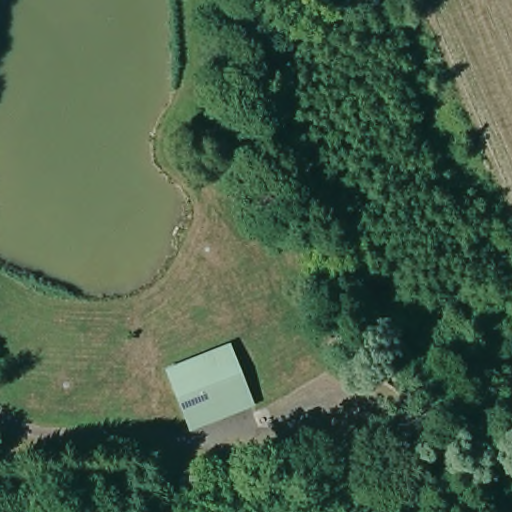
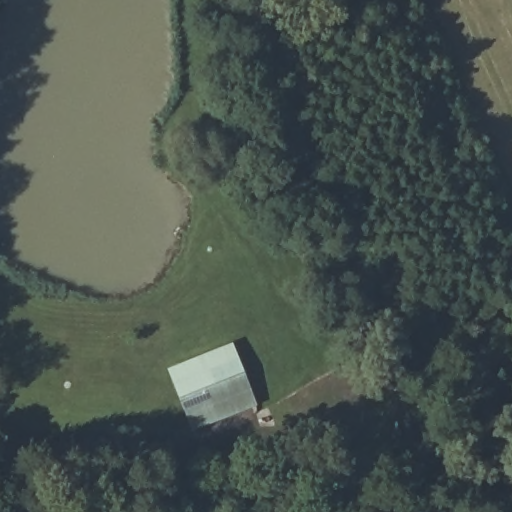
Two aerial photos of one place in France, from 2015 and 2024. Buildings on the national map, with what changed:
unchanged [(232,345),(256,410),(191,435),(166,370),(232,345)]

